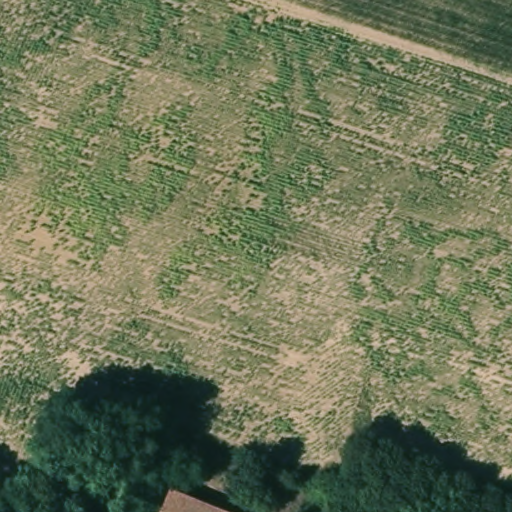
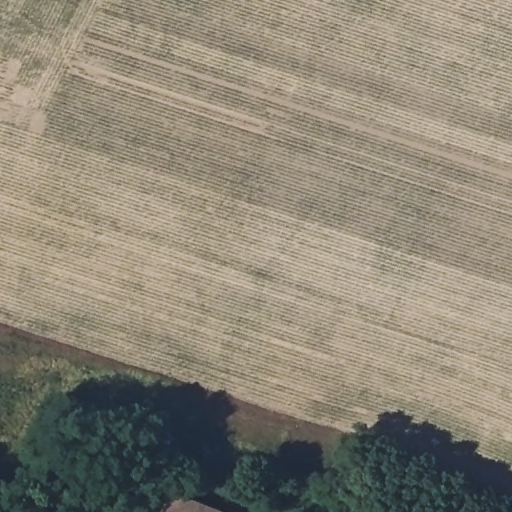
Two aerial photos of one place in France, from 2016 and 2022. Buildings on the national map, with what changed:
unchanged [(162,512),(167,497),(208,512),(162,512)]

